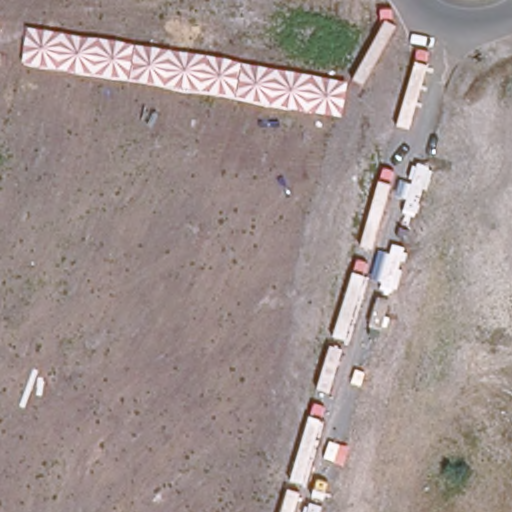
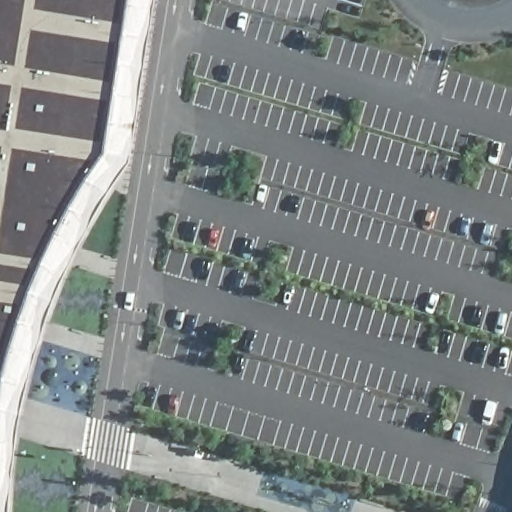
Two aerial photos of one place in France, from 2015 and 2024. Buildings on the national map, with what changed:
new [(86,189),(69,219),(50,258),(32,297),(21,330),(7,375),(0,405),(0,0),(133,0),(108,156),(86,189)]

